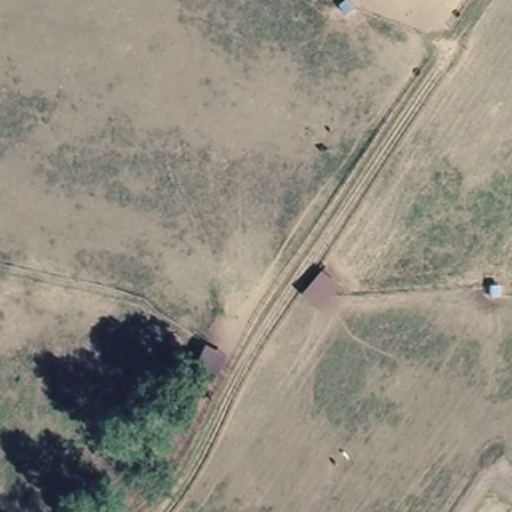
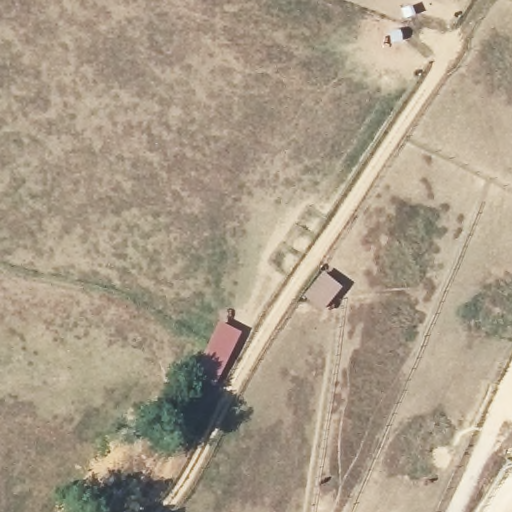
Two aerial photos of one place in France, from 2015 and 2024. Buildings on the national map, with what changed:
unchanged [(319,310),(304,297),(325,273),(340,286),(319,310)]
unchanged [(212,384),(196,376),(209,349),(225,357),(212,384)]

